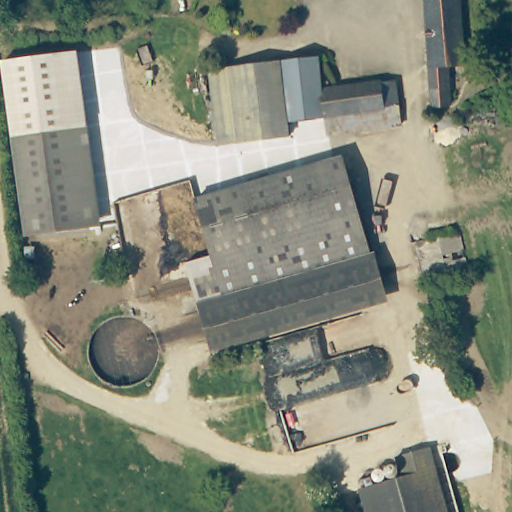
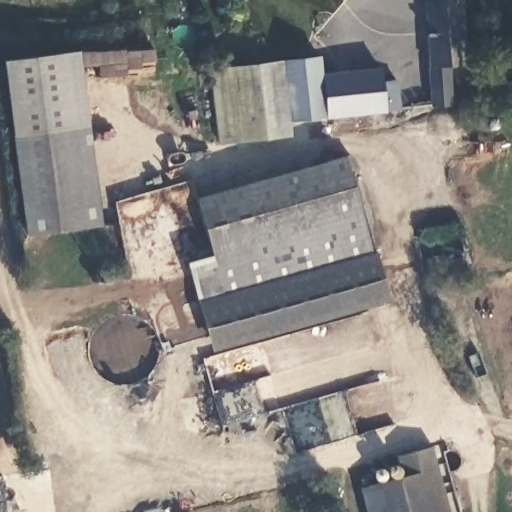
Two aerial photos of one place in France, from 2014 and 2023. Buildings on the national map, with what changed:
unchanged [(463,69),(458,70),(448,72),(451,101),(431,104),(422,0),(452,0),(456,45),(463,69)]
unchanged [(1,61),(77,50),(87,126),(100,225),(23,236),(11,137),(1,61)]
unchanged [(321,60),(324,89),(283,92),(280,62),(321,60)]
unchanged [(280,62),(283,92),(287,121),(289,135),(255,139),(219,142),(210,92),(207,70),(238,66),(280,62)]
unchanged [(287,121),(283,92),(324,89),(396,77),(401,108),(330,116),(287,121)]
unchanged [(198,145),(190,93),(210,92),(219,142),(198,145)]
unchanged [(401,108),(404,124),(332,131),(330,116),(401,108)]
unchanged [(348,170),(372,266),(286,290),(268,192),(348,170)]
unchanged [(200,211),(268,192),(286,290),(227,305),(200,211)]
unchanged [(383,304),(293,328),(286,290),(372,266),(383,304)]
unchanged [(209,350),(199,313),(227,305),(286,290),(293,328),(209,350)]
unchanged [(448,512),(367,512),(360,486),(400,474),(397,455),(430,446),(448,512)]

